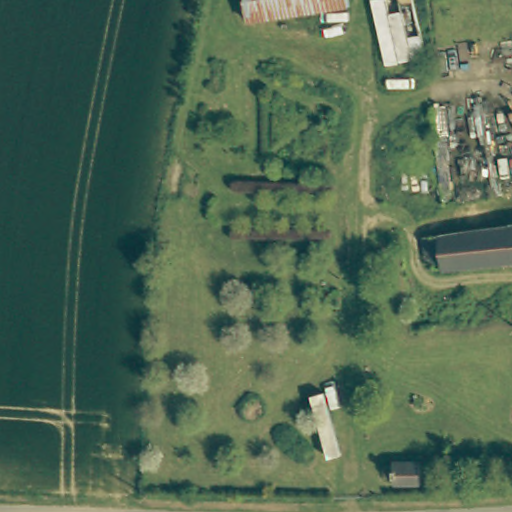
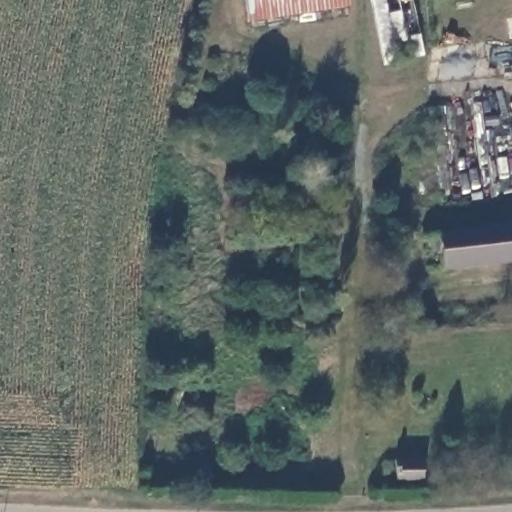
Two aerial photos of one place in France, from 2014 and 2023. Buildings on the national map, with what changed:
unchanged [(255,25),(251,0),(351,0),(353,11),(255,25)]
unchanged [(512,225),(512,265),(438,271),(425,273),(421,233),(434,232),(512,225)]
unchanged [(406,456),(437,456),(437,474),(424,475),(405,475),(391,466),(406,456)]

